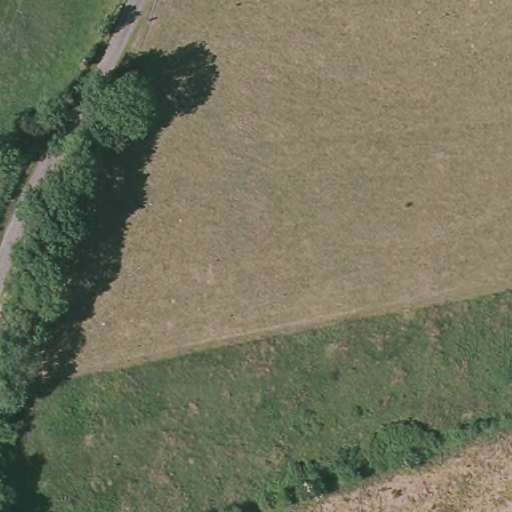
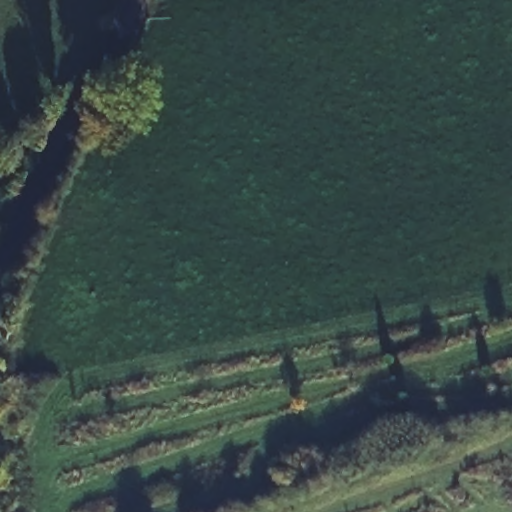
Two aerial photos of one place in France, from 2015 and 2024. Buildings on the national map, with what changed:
[]

